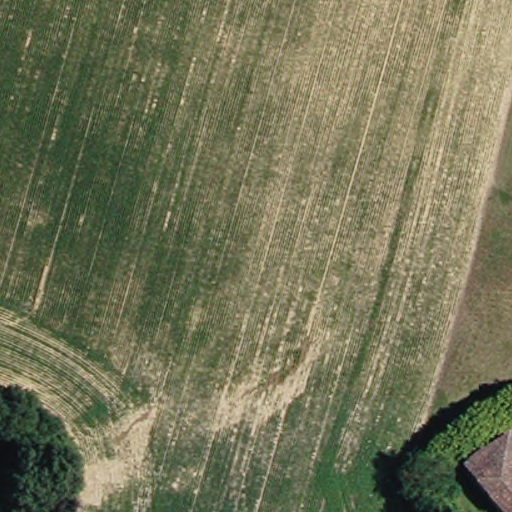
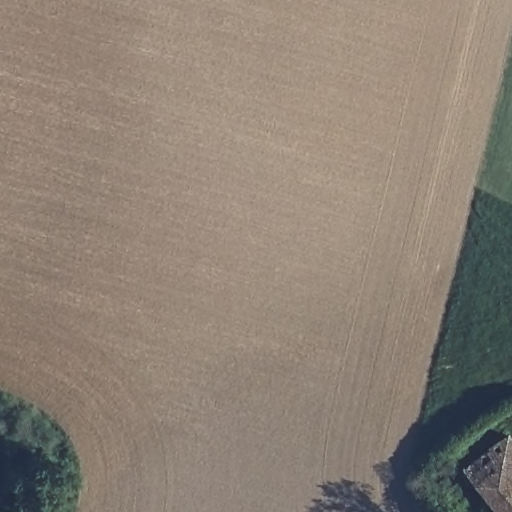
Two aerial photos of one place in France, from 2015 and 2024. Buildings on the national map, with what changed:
unchanged [(474,465),(512,438),(512,512),(474,465)]

